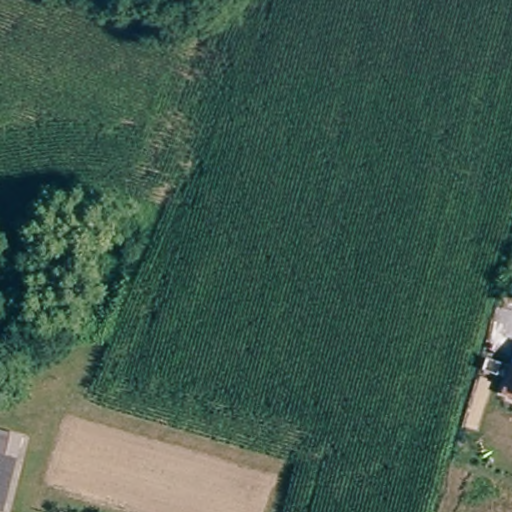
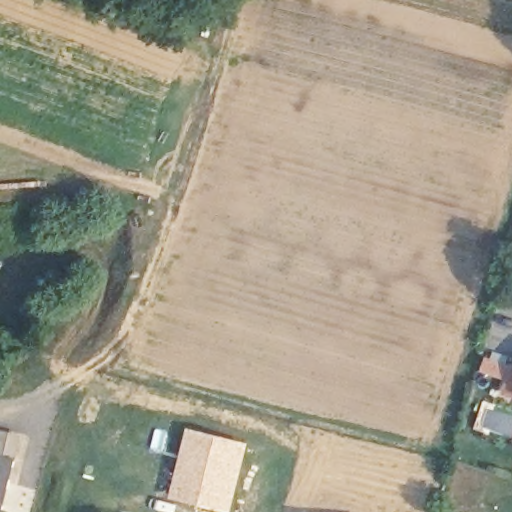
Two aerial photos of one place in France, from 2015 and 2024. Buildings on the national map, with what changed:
unchanged [(502,392),(512,362),(512,395),(502,392)]
new [(484,403),(512,412),(512,438),(477,427),(484,403)]
new [(185,428),(248,443),(231,512),(219,512),(168,499),(185,428)]
unchanged [(1,509),(0,508),(0,433),(20,439),(1,509)]

